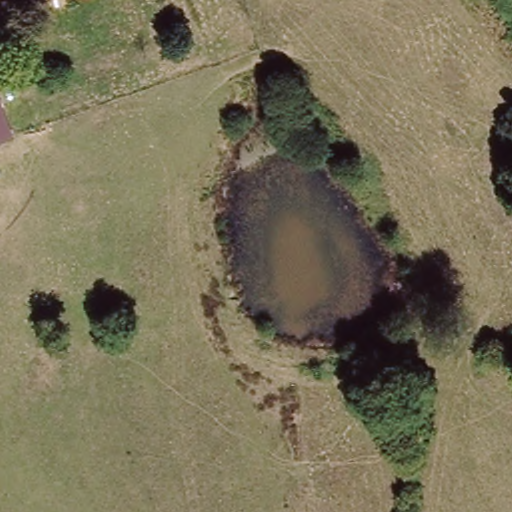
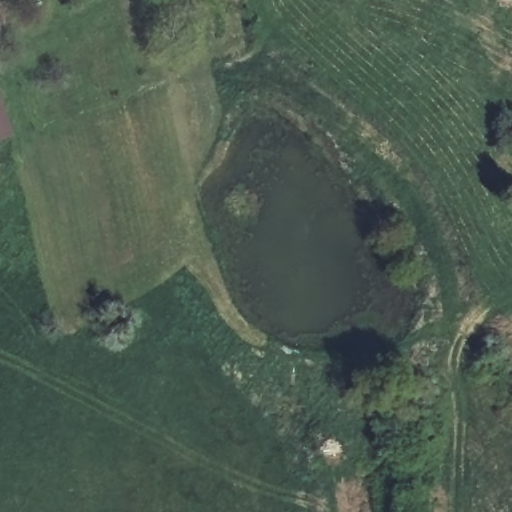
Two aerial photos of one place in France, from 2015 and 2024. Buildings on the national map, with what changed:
unchanged [(0,140),(0,108),(10,136),(0,140)]

